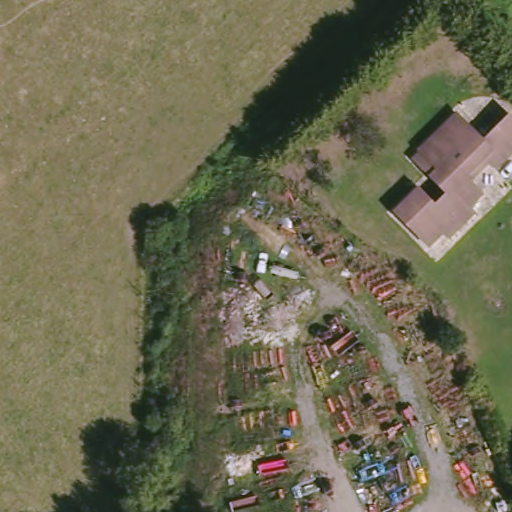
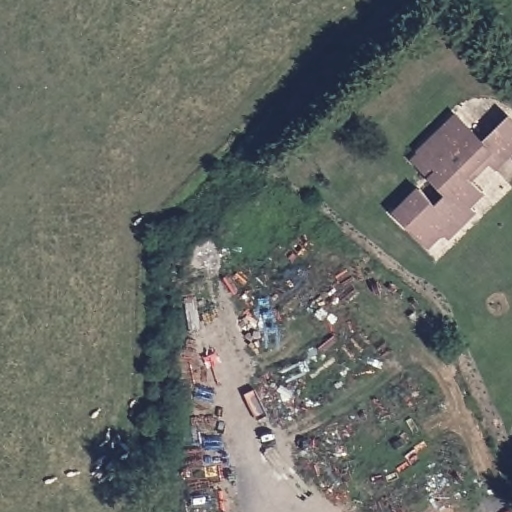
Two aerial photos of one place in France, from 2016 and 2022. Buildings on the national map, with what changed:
unchanged [(479,137),(507,111),(512,117),(512,144),(490,164),(481,154),(474,160),(468,155),(458,165),(480,188),(467,201),(473,207),(445,235),(438,228),(425,241),(392,207),(417,184),(433,201),(443,190),(427,173),(408,154),(415,147),(453,111),(479,137)]

